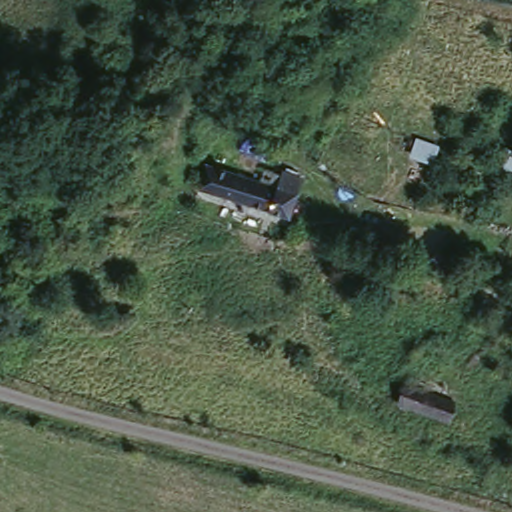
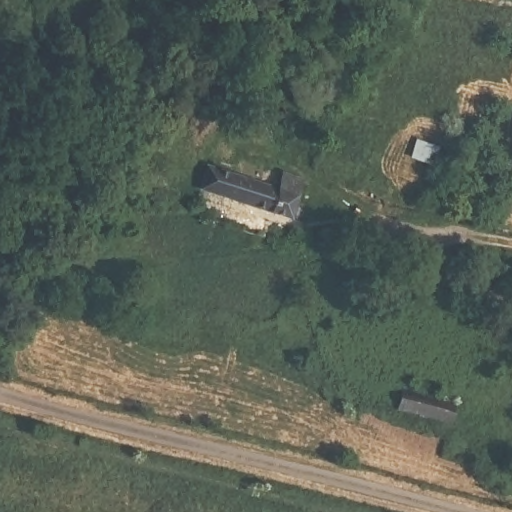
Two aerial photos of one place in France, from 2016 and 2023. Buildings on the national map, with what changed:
unchanged [(431,168),(406,159),(412,139),(437,148),(431,168)]
unchanged [(512,153),(512,174),(499,169),(503,151),(512,153)]
unchanged [(275,193),(279,182),(302,191),(288,224),(205,194),(215,171),(275,193)]
unchanged [(453,408),(444,428),(395,408),(405,387),(453,408)]

